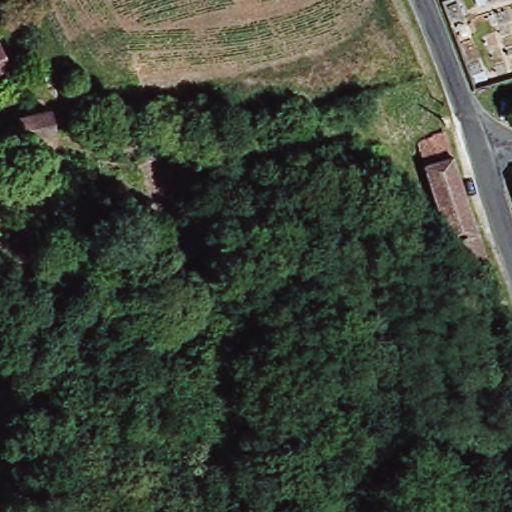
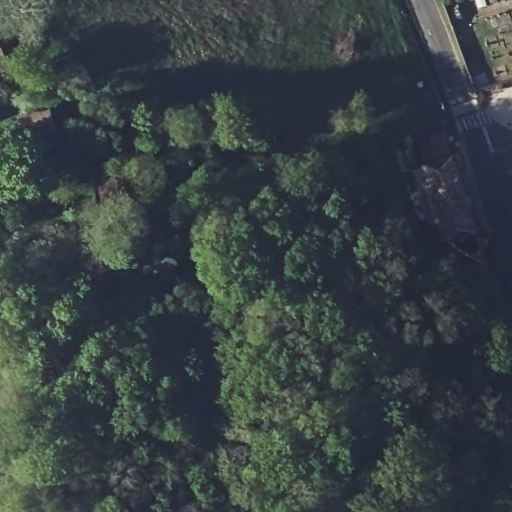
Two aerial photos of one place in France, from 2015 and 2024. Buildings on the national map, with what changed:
unchanged [(13,70),(0,76),(0,45),(13,70)]
unchanged [(50,125),(24,135),(15,114),(41,104),(50,125)]
unchanged [(452,247),(416,153),(445,142),(491,269),(460,257),(452,247)]

